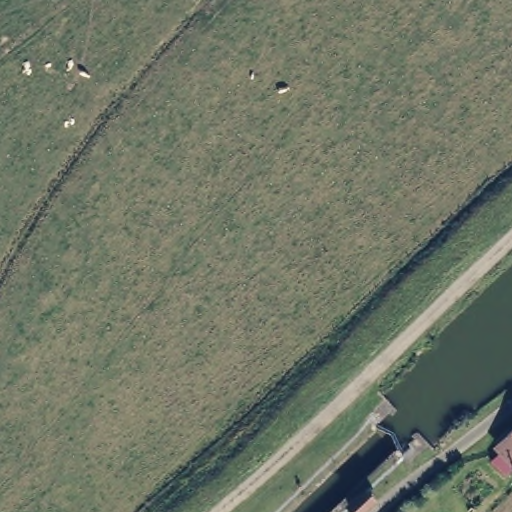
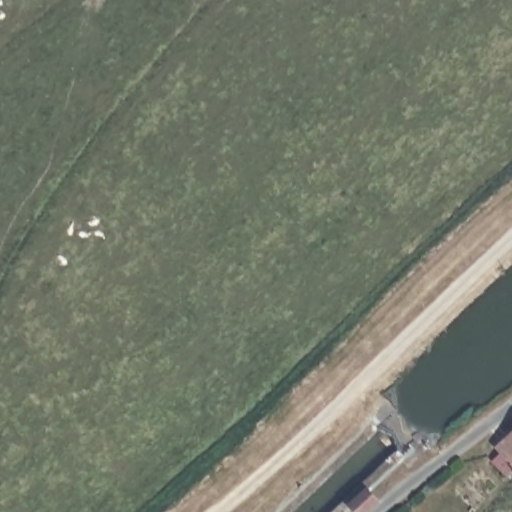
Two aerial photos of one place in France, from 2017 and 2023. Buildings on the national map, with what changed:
unchanged [(497,446),(512,432),(512,462),(497,446)]
unchanged [(361,512),(355,512),(348,507),(367,488),(377,497),(361,512)]

